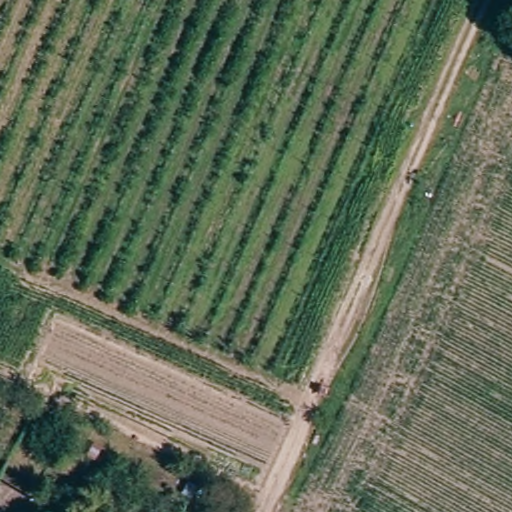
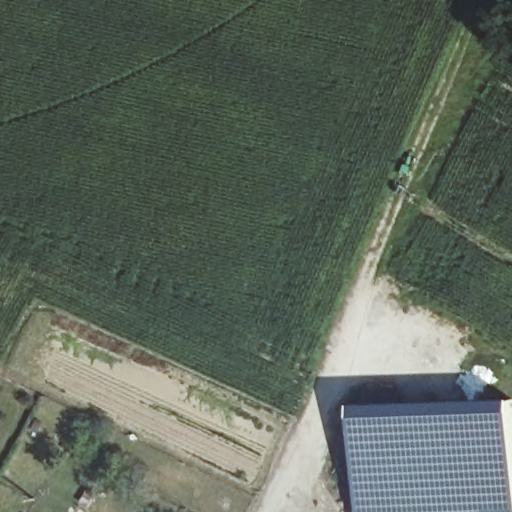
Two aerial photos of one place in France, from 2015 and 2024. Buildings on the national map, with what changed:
new [(512,512),(359,512),(354,405),(512,399),(512,512)]

